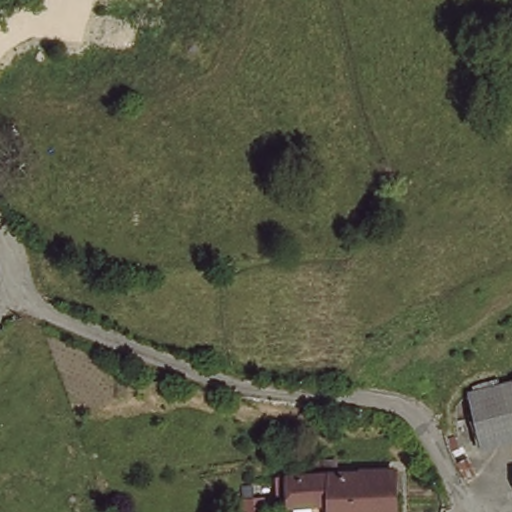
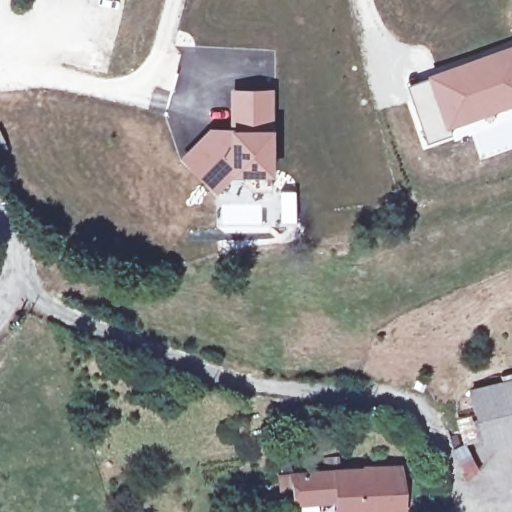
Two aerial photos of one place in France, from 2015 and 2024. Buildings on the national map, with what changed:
new [(455,62),(512,44),(512,105),(447,128),(427,74),(455,62)]
new [(427,74),(447,128),(448,132),(426,140),(407,83),(427,74)]
new [(210,125),(230,124),(230,86),(273,86),(272,172),(238,172),(227,178),(214,190),(180,157),(210,125)]
new [(279,188),(295,188),(295,219),(279,219),(279,188)]
unchanged [(487,440),(472,390),(512,378),(512,433),(487,440)]
unchanged [(395,457),(400,503),(344,512),(338,512),(337,506),(312,512),(299,512),(291,476),(278,481),(272,473),(288,463),(325,455),(327,469),(332,468),(395,457)]

